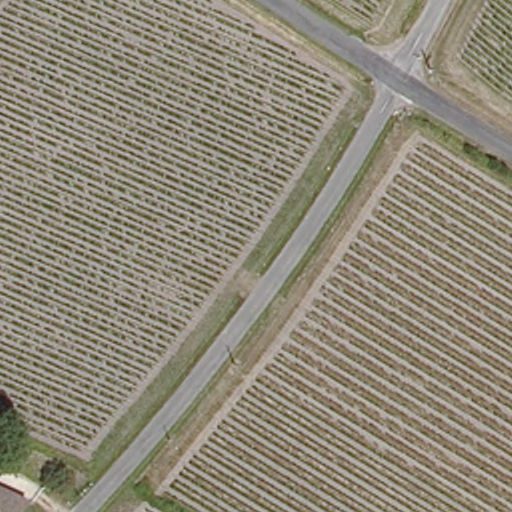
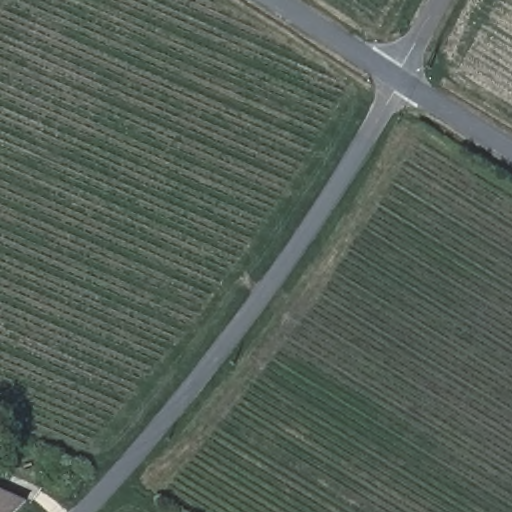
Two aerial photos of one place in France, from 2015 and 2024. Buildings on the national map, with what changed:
unchanged [(11,512),(0,512),(0,506),(11,511),(11,512)]

